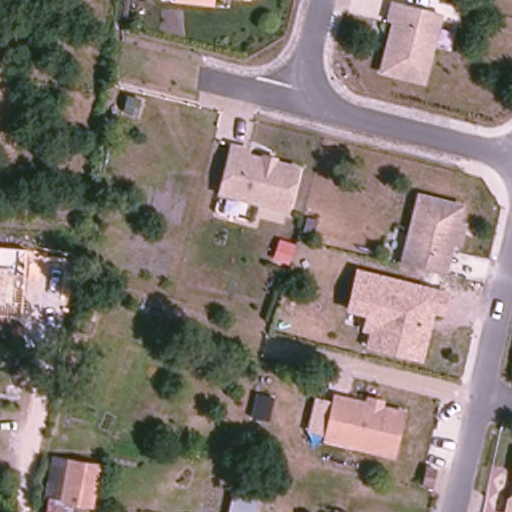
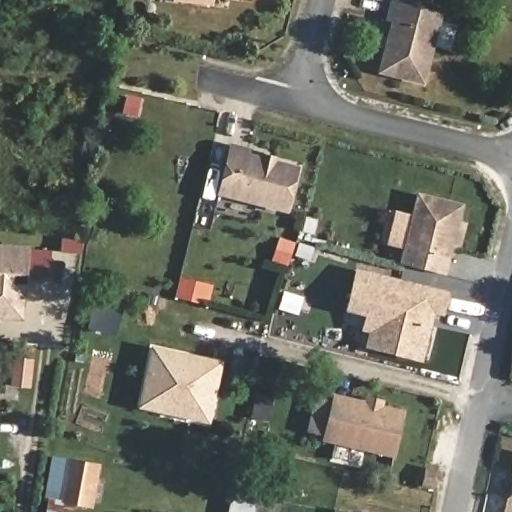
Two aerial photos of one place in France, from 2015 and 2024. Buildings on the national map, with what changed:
unchanged [(172,1),(172,0),(213,0),(212,6),(172,1)]
unchanged [(423,80),(380,69),(393,19),(388,18),(392,1),(441,13),(423,80)]
unchanged [(285,210),(218,191),(232,144),(248,149),(247,153),(297,168),(285,210)]
unchanged [(397,263),(415,194),(457,206),(453,222),(459,223),(453,243),(447,242),(440,274),(437,273),(397,263)]
unchanged [(21,318),(0,316),(0,247),(25,249),(21,318)]
unchanged [(448,292),(443,317),(433,316),(422,362),(367,348),(370,334),(360,333),(365,316),(346,312),(356,268),(448,292)]
new [(167,401),(165,410),(139,404),(151,349),(202,360),(199,373),(212,376),(207,400),(202,419),(184,415),(186,406),(167,401)]
unchanged [(369,399),(383,402),(382,408),(404,414),(392,457),(324,439),(335,396),(367,404),(369,399)]
unchanged [(55,461),(71,464),(99,468),(92,505),(92,508),(73,504),(72,512),(46,512),(48,500),(55,461)]
unchanged [(422,485),(426,470),(436,473),(431,490),(422,488),(422,485)]
unchanged [(512,481),(512,512),(507,512),(512,481)]
unchanged [(251,497),(249,512),(224,512),(227,495),(251,497)]

